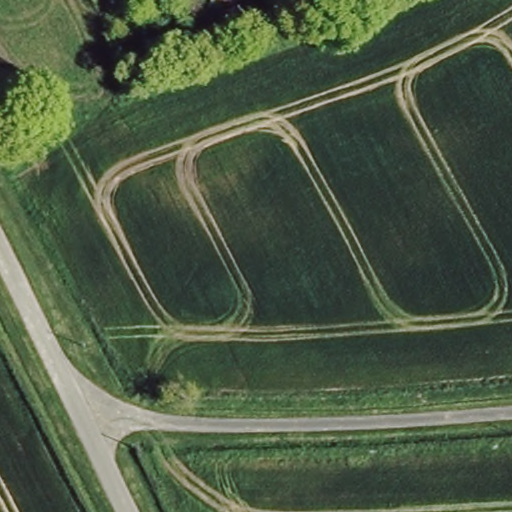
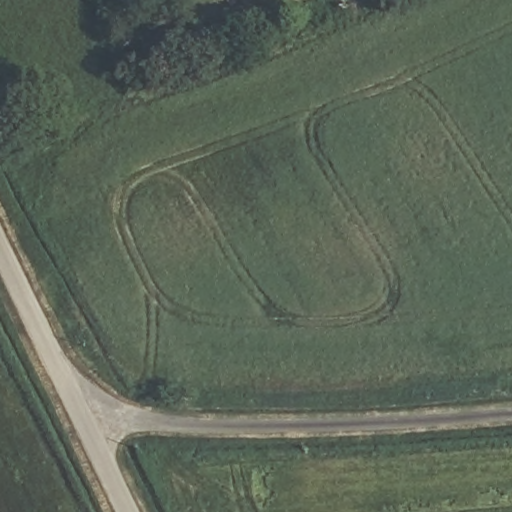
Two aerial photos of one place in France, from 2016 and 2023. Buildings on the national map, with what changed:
unchanged [(244,3),(252,17),(236,25),(227,11),(244,3)]

